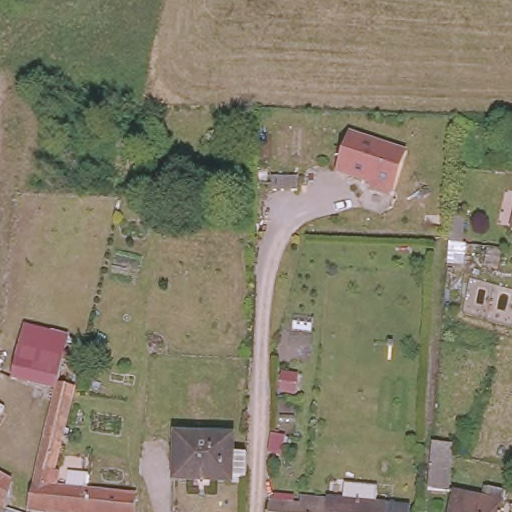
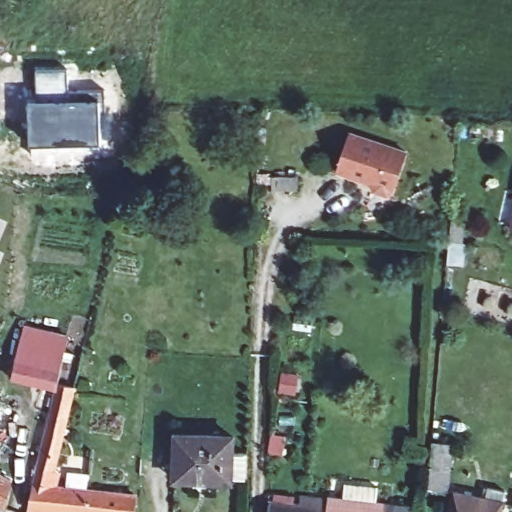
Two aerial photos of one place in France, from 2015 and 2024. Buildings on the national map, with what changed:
new [(68,90),(105,88),(105,111),(100,111),(100,143),(30,145),(29,99),(40,100),(37,69),(67,68),(68,90)]
unchanged [(187,109),(186,126),(162,126),(163,108),(187,109)]
unchanged [(405,155),(392,193),(385,197),(372,192),(368,185),(335,174),(347,136),(405,155)]
unchanged [(295,179),(295,192),(272,192),(272,179),(295,179)]
unchanged [(463,227),(461,251),(450,249),(451,226),(463,227)]
unchanged [(55,395),(48,395),(50,386),(10,376),(23,322),(68,333),(65,349),(75,351),(73,360),(63,358),(58,380),(55,395)]
unchanged [(58,380),(75,384),(56,467),(46,510),(30,509),(55,395),(58,380)]
unchanged [(226,435),(226,450),(241,450),(240,475),(225,475),(225,479),(171,478),(172,433),(226,435)]
unchanged [(282,438),(280,456),(270,455),(270,451),(272,437),(282,438)]
unchanged [(446,488),(426,487),(431,440),(451,442),(450,452),(446,488)]
unchanged [(65,468),(63,482),(146,494),(146,512),(68,512),(46,510),(56,467),(65,468)]
unchanged [(8,508),(0,503),(0,473),(16,483),(8,508)]
unchanged [(455,490),(485,496),(488,485),(505,488),(502,500),(500,512),(449,512),(455,490)]
unchanged [(265,505),(294,508),(295,499),(320,502),(322,501),(336,502),(338,487),(370,490),(369,506),(401,509),(401,512),(264,512),(265,505)]

